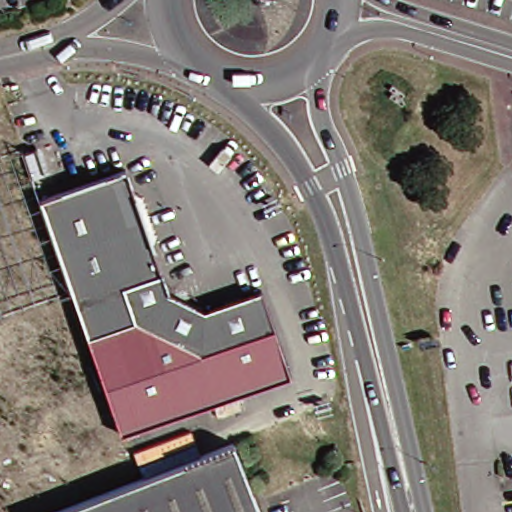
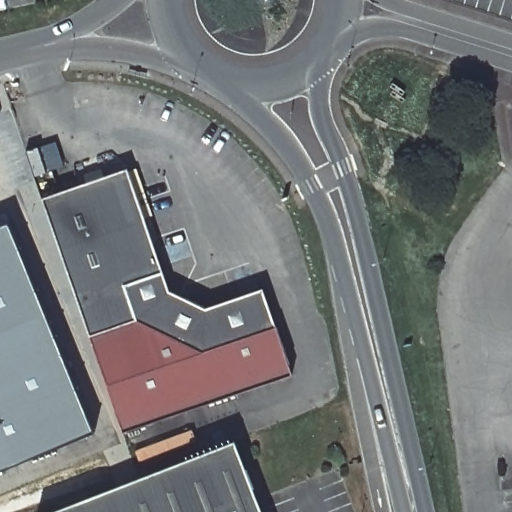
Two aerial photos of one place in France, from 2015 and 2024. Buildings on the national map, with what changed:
new [(64,169),(34,179),(26,154),(56,144),(64,169)]
demolished [(0,312),(0,151),(17,146),(36,200),(68,293),(0,312)]
unchanged [(160,291),(197,311),(257,291),(266,327),(195,354),(126,320),(84,337),(68,293),(36,200),(121,171),(160,291)]
new [(0,470),(0,225),(8,222),(94,432),(0,470)]
unchanged [(286,373),(119,431),(84,337),(126,320),(195,354),(266,327),(286,373)]
new [(192,431),(196,442),(139,463),(135,452),(192,431)]
unchanged [(250,512),(55,512),(224,447),(250,512)]

